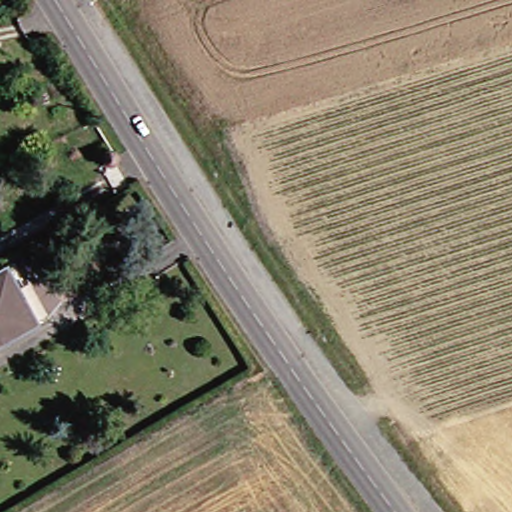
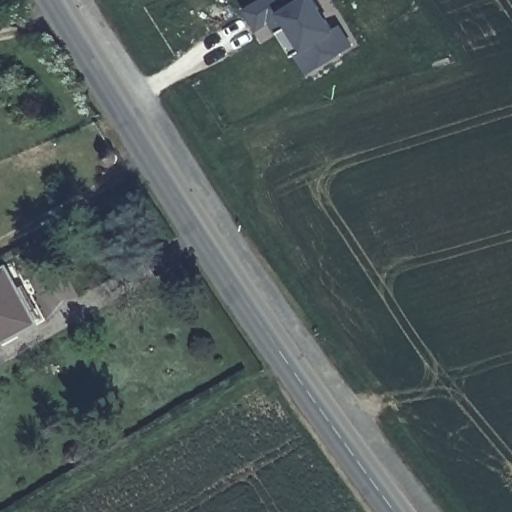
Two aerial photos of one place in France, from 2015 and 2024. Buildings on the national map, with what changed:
new [(270,21),(257,30),(245,10),(262,0),(296,0),(297,2),(301,0),(313,0),(332,30),(338,26),(351,46),(307,74),(295,54),(291,56),(270,21)]
unchanged [(117,160),(117,161),(116,162),(116,163),(115,165),(114,165),(112,165),(111,166),(110,166),(109,166),(107,166),(106,166),(105,165),(103,164),(102,162),(101,162),(101,161),(101,160),(101,159),(100,157),(101,155),(101,154),(102,153),(103,152),(104,151),(105,150),(106,150),(107,150),(109,149),(110,149),(111,150),(112,150),(114,150),(115,151),(116,152),(116,153),(117,154),(117,155),(117,156),(118,157),(118,159),(117,160)]
unchanged [(27,285),(46,317),(14,335),(0,343),(0,273),(16,264),(27,285)]

